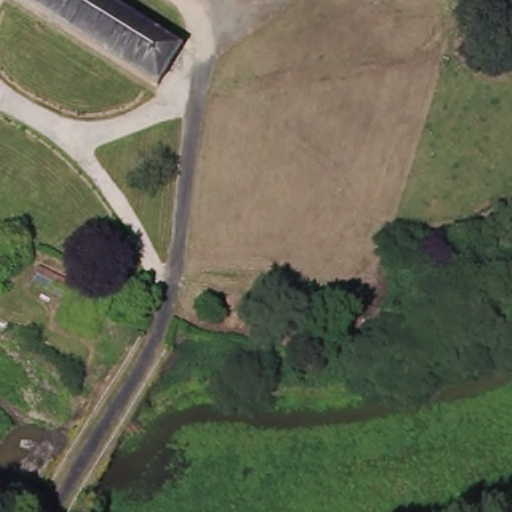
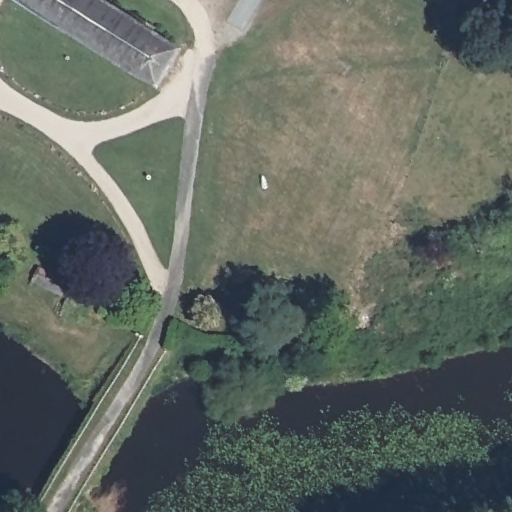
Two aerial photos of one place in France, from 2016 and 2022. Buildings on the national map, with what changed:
unchanged [(163,84),(158,81),(24,0),(112,0),(185,44),(163,84)]
unchanged [(51,259),(83,278),(76,289),(44,270),(51,259)]

